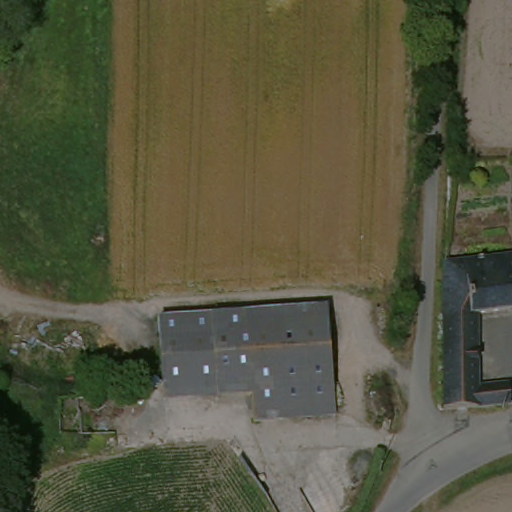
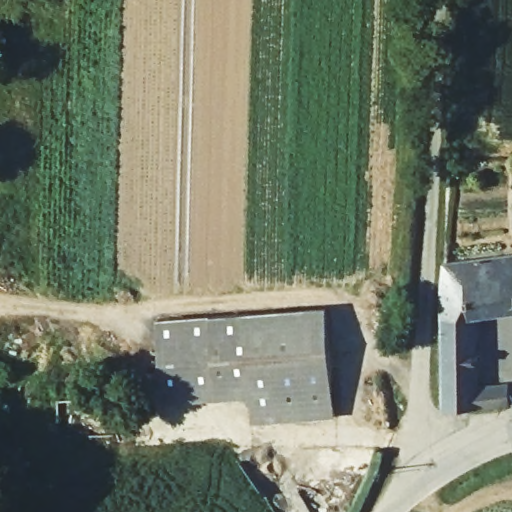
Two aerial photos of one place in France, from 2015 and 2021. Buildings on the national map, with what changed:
unchanged [(476,411),(444,413),(444,260),(448,259),(512,257),(512,314),(473,317),(476,391),(503,388),(506,409),(476,411)]
unchanged [(331,419),(243,429),(241,393),(238,366),(236,340),(235,315),(324,310),(328,361),(331,419)]
unchanged [(241,393),(233,394),(169,398),(168,379),(167,344),(236,340),(238,366),(241,393)]

